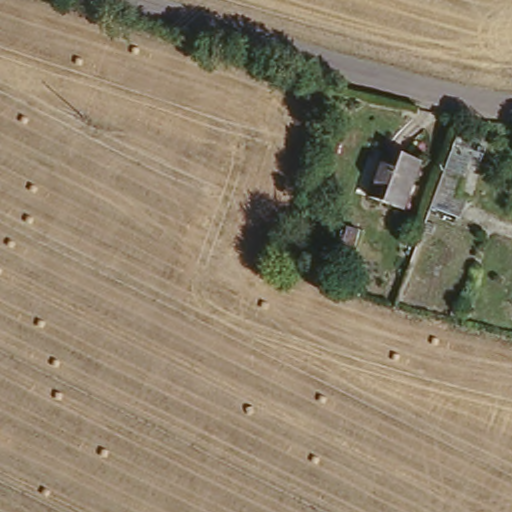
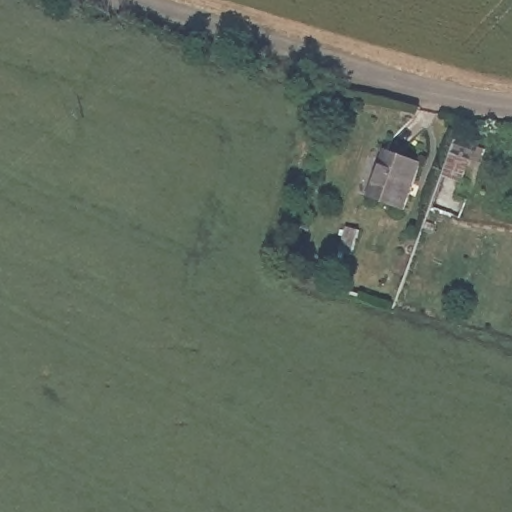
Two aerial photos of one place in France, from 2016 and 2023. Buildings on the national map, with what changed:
unchanged [(371,200),(391,141),(427,154),(407,212),(371,200)]

